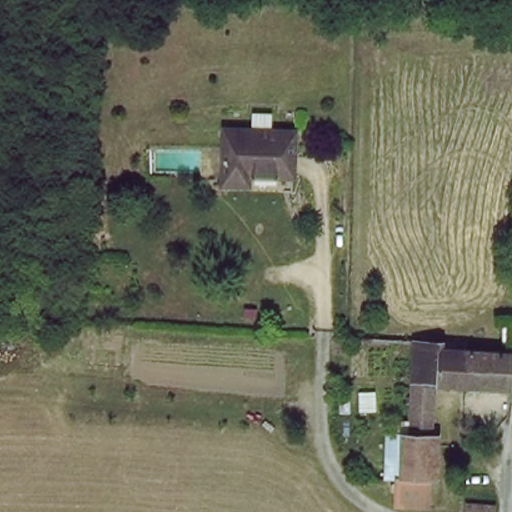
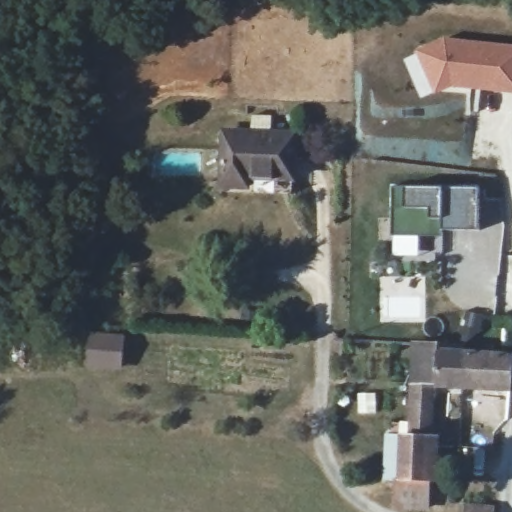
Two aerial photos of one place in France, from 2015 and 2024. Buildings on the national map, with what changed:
new [(436,95),(416,51),(445,39),(512,45),(512,94),(453,88),(436,95)]
unchanged [(232,131),(296,133),(295,174),(256,173),(255,184),(230,182),(232,131)]
new [(442,230),(442,237),(392,237),(392,187),(404,187),(442,187),(478,187),(478,231),(442,230)]
new [(90,337),(120,340),(118,370),(88,367),(90,337)]
unchanged [(443,383),(415,382),(418,342),(444,343),(443,383)]
unchanged [(471,385),(443,383),(444,343),(467,345),(469,351),(475,352),(474,385),(471,385)]
unchanged [(512,386),(474,385),(475,352),(512,354),(512,386)]
unchanged [(443,383),(440,425),(440,433),(415,432),(415,382),(443,383)]
unchanged [(440,433),(435,478),(405,477),(407,432),(415,432),(440,433)]
unchanged [(435,478),(437,512),(397,512),(397,475),(405,477),(435,478)]
unchanged [(472,506),(492,507),(492,512),(471,512),(472,506)]

